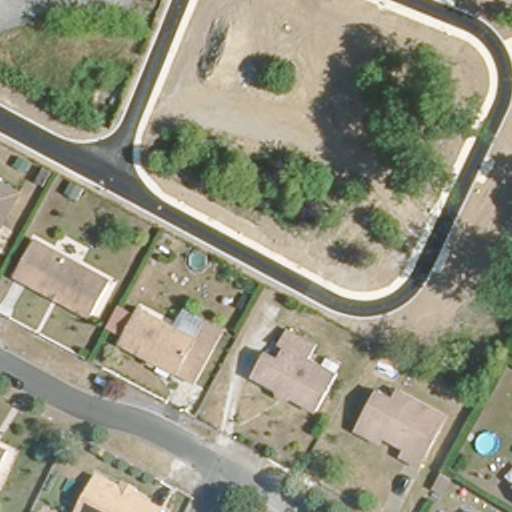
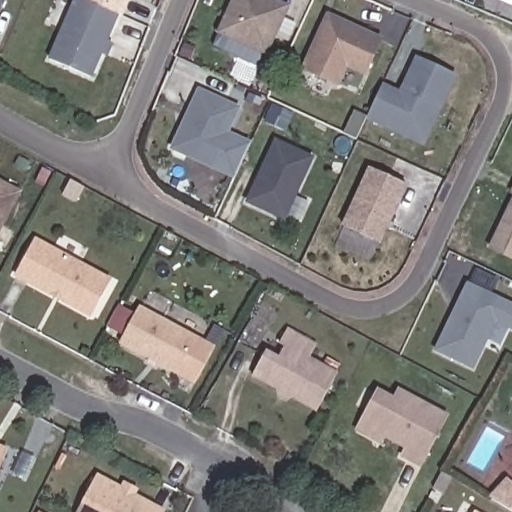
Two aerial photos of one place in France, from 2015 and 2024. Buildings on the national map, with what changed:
new [(0,10),(0,0),(4,0),(0,10)]
new [(122,16),(119,15),(107,41),(114,44),(108,56),(102,54),(92,78),(48,58),(73,0),(130,0),(122,16)]
new [(231,0),(277,0),(289,6),(266,57),(216,32),(231,0)]
demolished [(357,16),(350,14),(341,34),(310,20),(313,11),(314,10),(318,0),(363,0),(357,16)]
demolished [(395,9),(371,0),(398,0),(395,9)]
demolished [(425,1),(421,0),(425,0),(425,1)]
new [(326,12),(380,37),(364,76),(346,68),(338,85),(300,68),(326,12)]
new [(382,82),(398,90),(415,57),(456,75),(424,146),(366,118),(382,82)]
demolished [(192,96),(185,92),(177,88),(182,80),(196,88),(192,96)]
new [(197,87),(240,107),(211,169),(169,149),(197,87)]
new [(314,157),(284,220),(245,203),(273,138),(314,157)]
new [(368,169),(406,185),(381,242),(341,224),(368,169)]
unchanged [(0,215),(0,175),(16,184),(0,215)]
new [(512,186),(512,194),(509,192),(512,186)]
new [(512,198),(512,260),(488,248),(512,198)]
unchanged [(92,310),(16,269),(34,234),(111,276),(92,310)]
new [(512,303),(512,330),(496,322),(473,369),(435,350),(467,281),(512,303)]
unchanged [(189,377),(172,368),(114,337),(132,301),(190,332),(208,342),(189,377)]
unchanged [(315,410),(253,377),(265,353),(278,360),(283,350),(276,347),(283,333),(311,347),(304,362),(333,377),(315,410)]
unchanged [(369,437),(350,428),(355,419),(372,386),(387,394),(392,385),(437,409),(411,459),(393,450),(396,444),(378,435),(369,437)]
unchanged [(4,444),(0,451),(0,442),(4,444)]
unchanged [(160,509),(158,512),(72,512),(91,474),(160,509)]
unchanged [(470,512),(469,512),(470,511),(470,512)]

